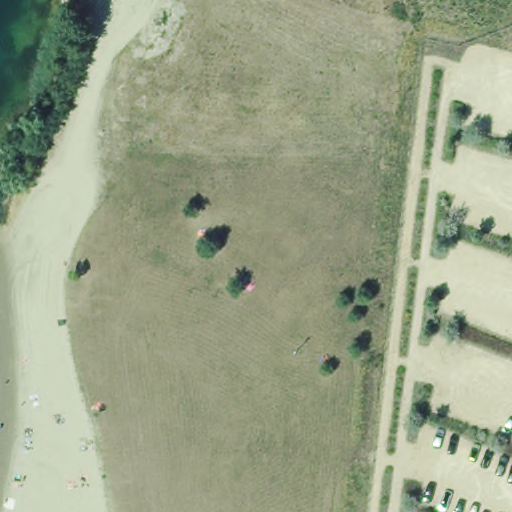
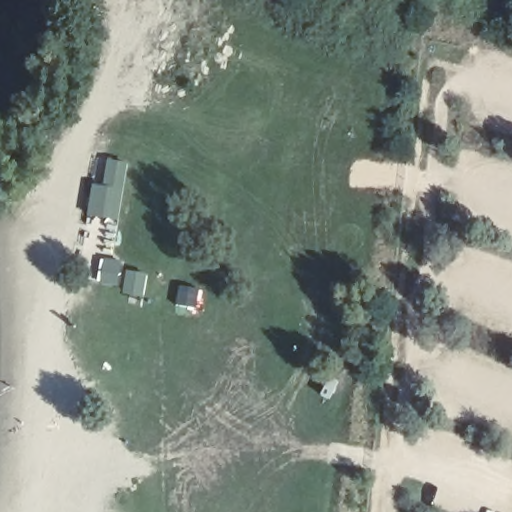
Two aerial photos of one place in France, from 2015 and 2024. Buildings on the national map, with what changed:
new [(108,160),(128,164),(119,221),(88,216),(93,186),(107,187),(108,160)]

